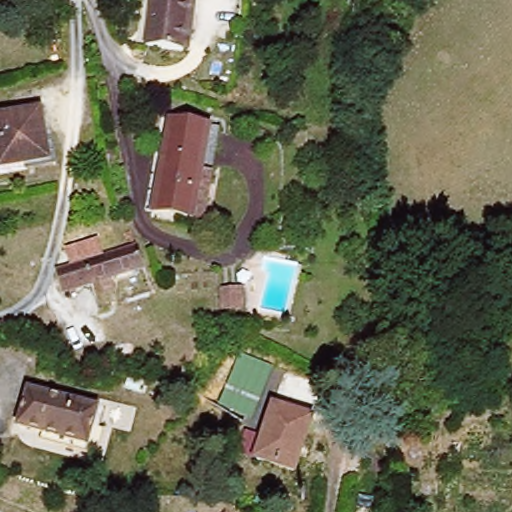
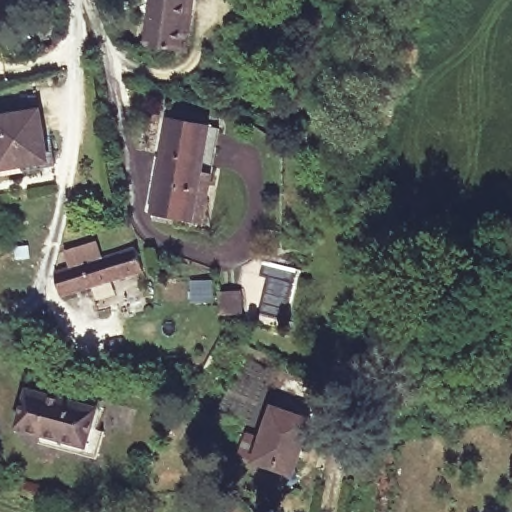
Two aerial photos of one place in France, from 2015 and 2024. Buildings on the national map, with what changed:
unchanged [(182,50),(145,45),(151,0),(194,0),(187,51),(182,50)]
unchanged [(2,171),(0,156),(0,114),(44,107),(52,156),(27,161),(28,166),(2,171)]
unchanged [(156,127),(143,124),(147,111),(159,115),(156,127)]
unchanged [(152,211),(168,118),(208,126),(219,128),(210,173),(202,221),(152,211)]
unchanged [(153,270),(72,295),(65,271),(80,266),(76,252),(106,243),(110,258),(145,246),(153,270)]
unchanged [(242,293),(242,312),(220,312),(220,293),(242,293)]
unchanged [(109,454),(54,438),(56,431),(27,422),(37,383),(105,403),(100,423),(117,428),(109,454)]
unchanged [(260,461),(277,408),(317,421),(298,474),(260,461)]

